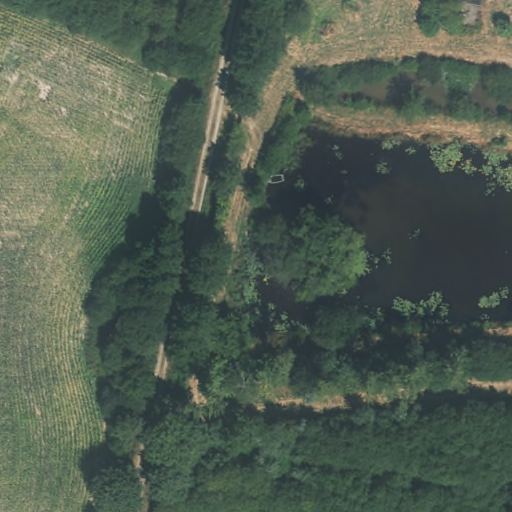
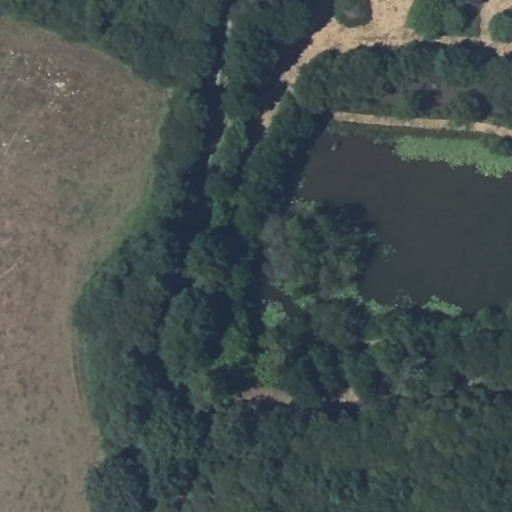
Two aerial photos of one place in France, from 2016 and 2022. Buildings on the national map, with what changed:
unchanged [(484,5),(458,0),(485,0),(484,5)]

